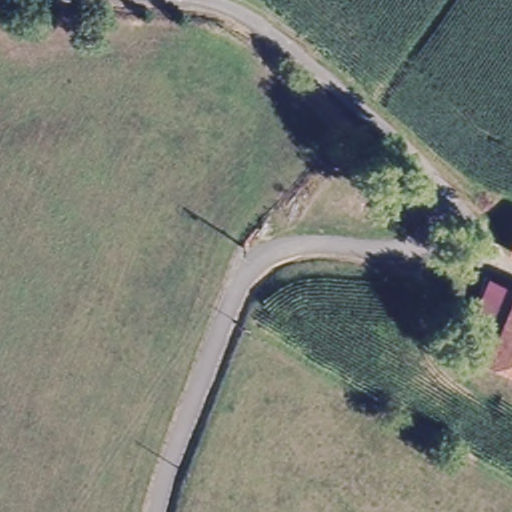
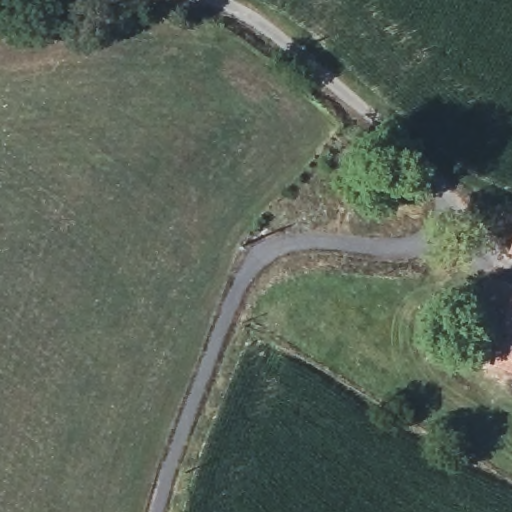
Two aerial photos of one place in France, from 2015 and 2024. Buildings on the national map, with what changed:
unchanged [(512,283),(512,289),(488,362),(463,342),(468,330),(487,272),(512,283)]
unchanged [(512,370),(488,362),(512,289),(512,370)]

